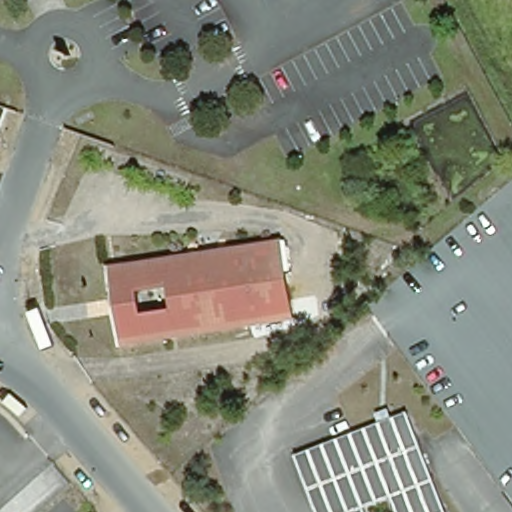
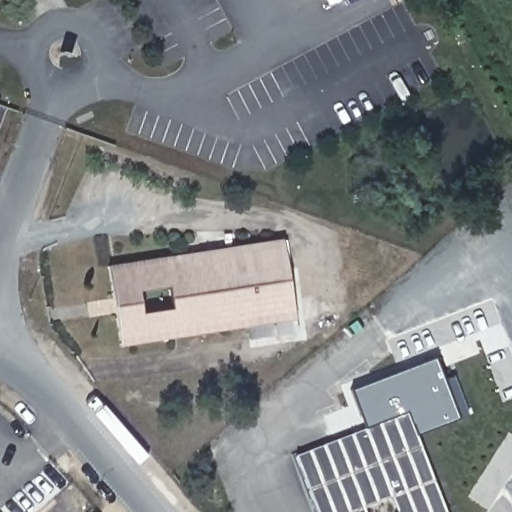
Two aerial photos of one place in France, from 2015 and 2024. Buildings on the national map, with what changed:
new [(331,4),(328,0),(339,0),(331,4)]
unchanged [(285,238),(299,319),(285,322),(271,241),(285,238)]
unchanged [(271,241),(285,322),(138,348),(134,349),(118,269),(271,241)]
unchanged [(134,349),(120,352),(106,270),(118,269),(134,349)]
new [(435,357),(443,379),(453,376),(466,414),(414,434),(404,409),(365,425),(352,389),(435,357)]
unchanged [(446,512),(312,512),(290,456),(404,409),(446,512)]

